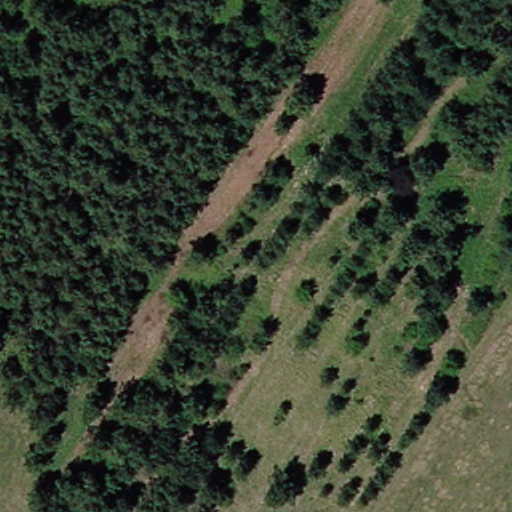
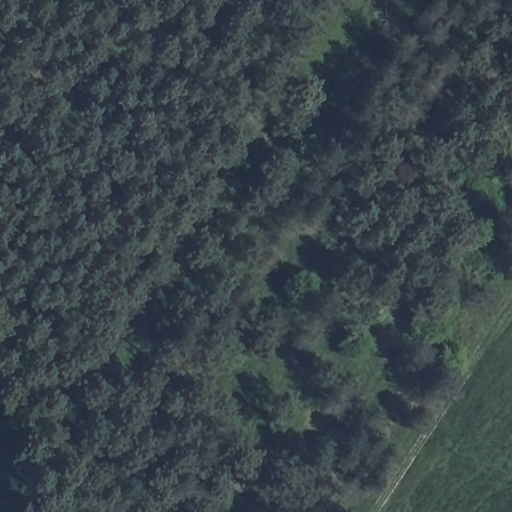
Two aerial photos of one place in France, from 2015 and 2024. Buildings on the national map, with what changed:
[]

